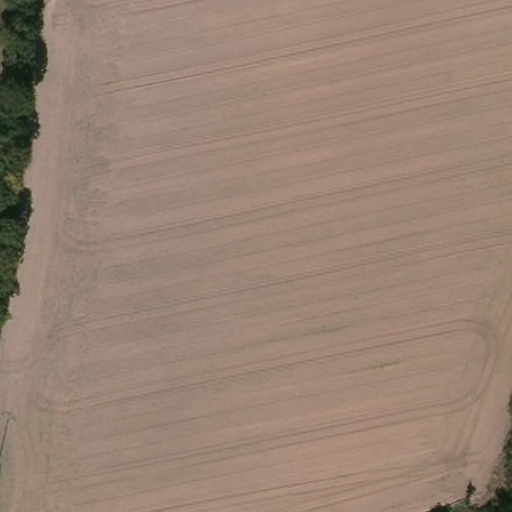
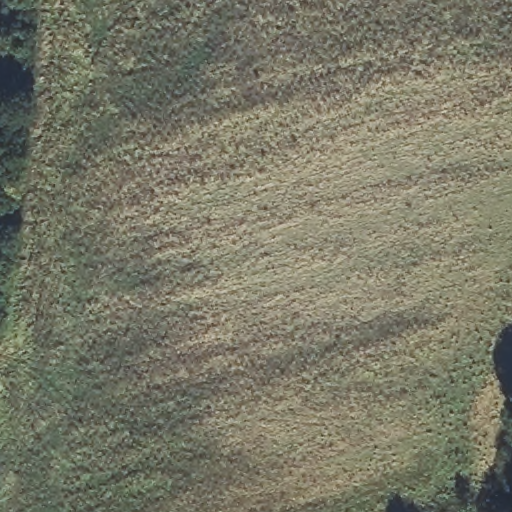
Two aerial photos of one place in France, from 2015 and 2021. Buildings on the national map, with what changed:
[]

